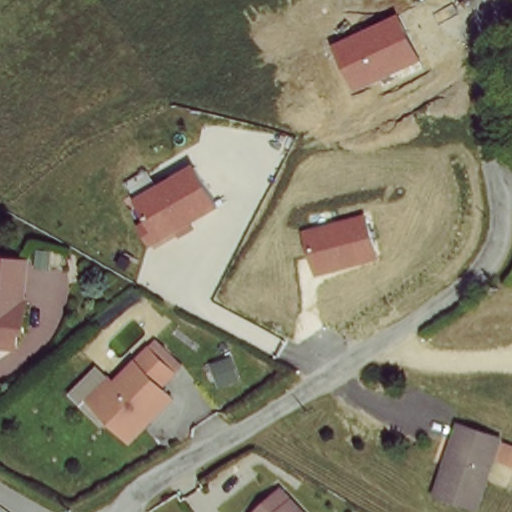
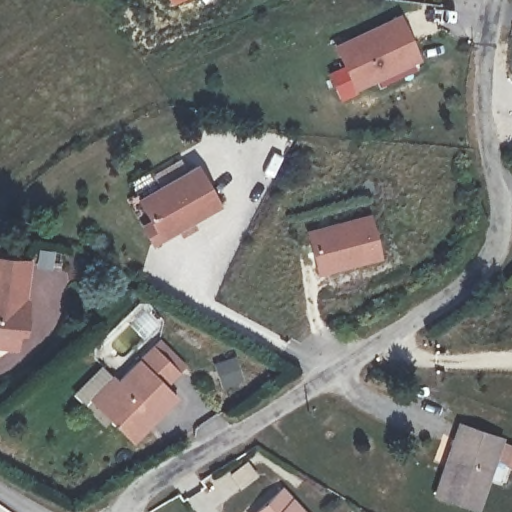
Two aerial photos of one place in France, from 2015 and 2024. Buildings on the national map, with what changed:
new [(173,7),(169,0),(184,0),(173,7)]
unchanged [(420,61),(355,92),(333,45),(398,15),(420,61)]
unchanged [(221,209),(153,247),(140,225),(148,219),(136,200),(194,163),(221,209)]
unchanged [(319,276),(305,230),(369,213),(382,259),(319,276)]
unchanged [(33,255),(31,295),(36,295),(34,327),(27,327),(26,342),(0,340),(0,253),(33,255)]
unchanged [(94,405),(148,347),(175,371),(162,386),(173,396),(133,442),(94,405)]
unchanged [(474,512),(441,502),(459,433),(499,445),(481,512),(474,512)]
unchanged [(302,512),(259,512),(281,491),(302,512)]

